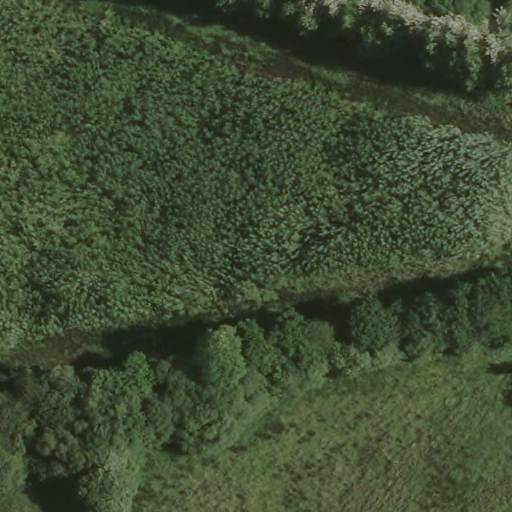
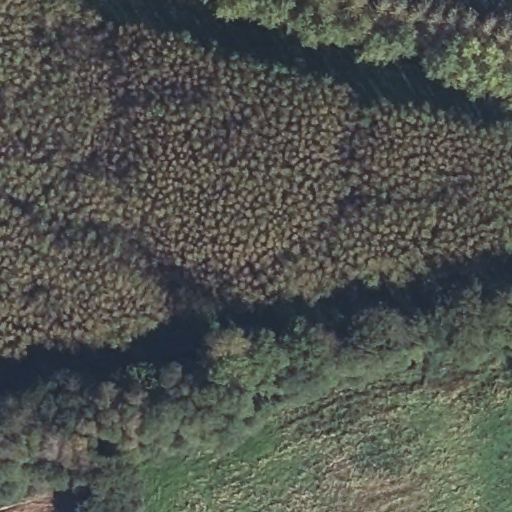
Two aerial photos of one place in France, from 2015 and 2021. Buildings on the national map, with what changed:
[]

